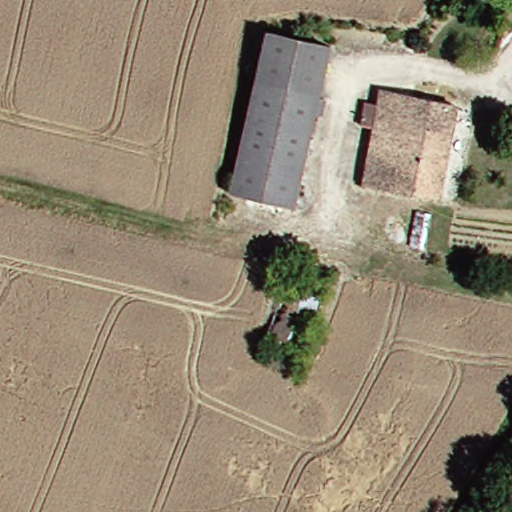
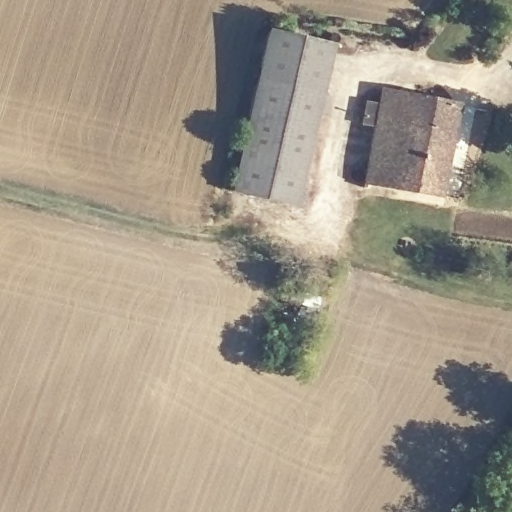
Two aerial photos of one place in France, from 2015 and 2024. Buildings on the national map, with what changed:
unchanged [(331,45),(291,211),(230,194),(267,31),(331,45)]
unchanged [(441,197),(371,182),(379,125),(370,122),(373,102),(385,104),(388,92),(457,106),(441,197)]
unchanged [(294,284),(321,292),(302,352),(291,350),(271,342),(286,300),(294,284)]

